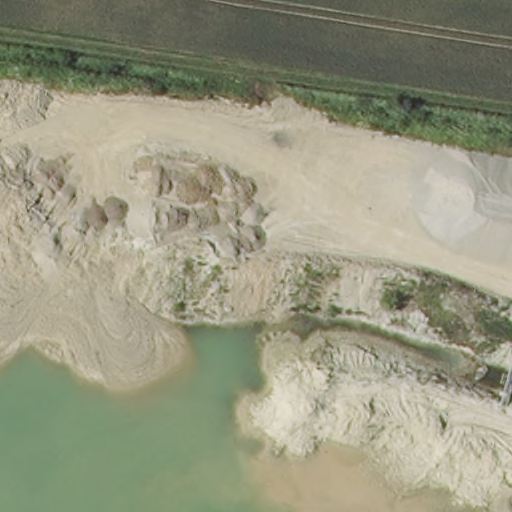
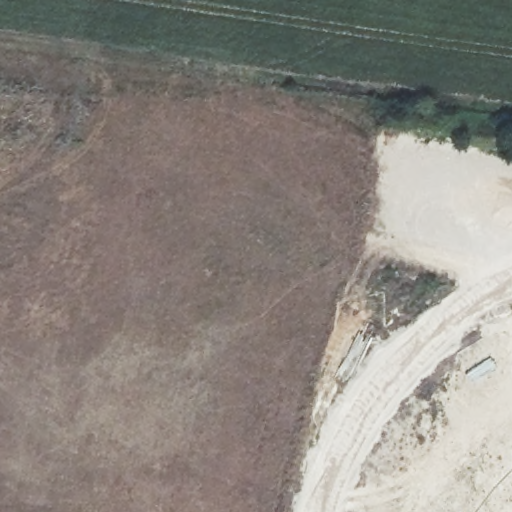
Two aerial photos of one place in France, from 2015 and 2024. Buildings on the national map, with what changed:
[]

